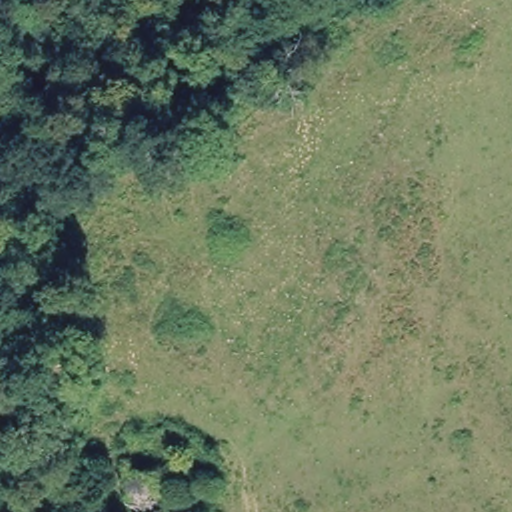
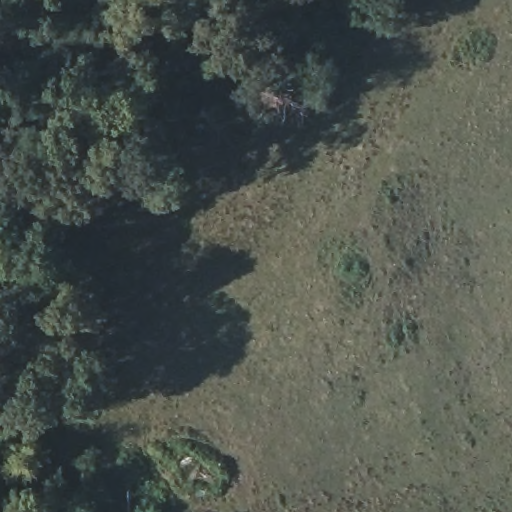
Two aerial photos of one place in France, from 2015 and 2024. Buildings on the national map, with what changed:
unchanged [(160,458),(166,512),(124,512),(120,458),(160,458)]

